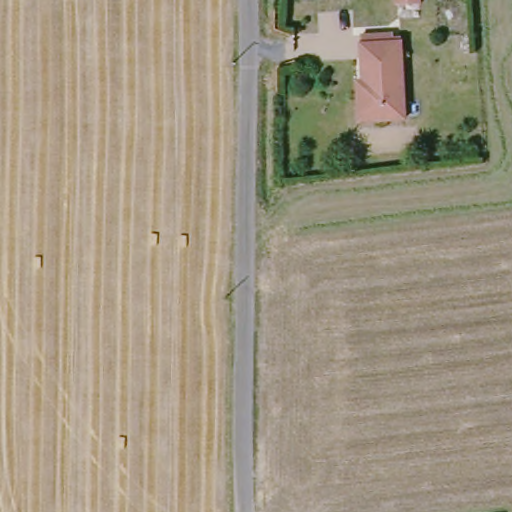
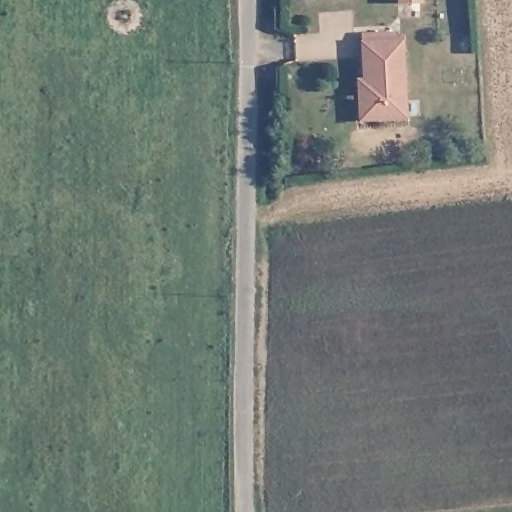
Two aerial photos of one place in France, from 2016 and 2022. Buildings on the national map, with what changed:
unchanged [(347,78),(356,78),(354,41),(353,31),(390,29),(391,38),(397,116),(350,120),(347,78)]

